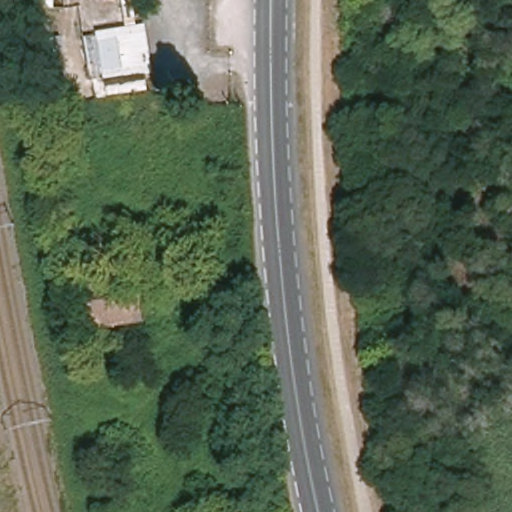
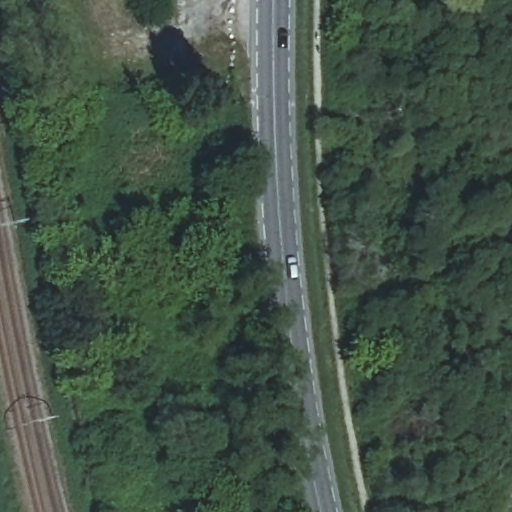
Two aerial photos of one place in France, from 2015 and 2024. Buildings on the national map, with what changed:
demolished [(82,38),(97,34),(145,23),(154,73),(104,82),(91,84),(82,38)]
unchanged [(140,320),(82,328),(74,278),(133,269),(140,320)]

